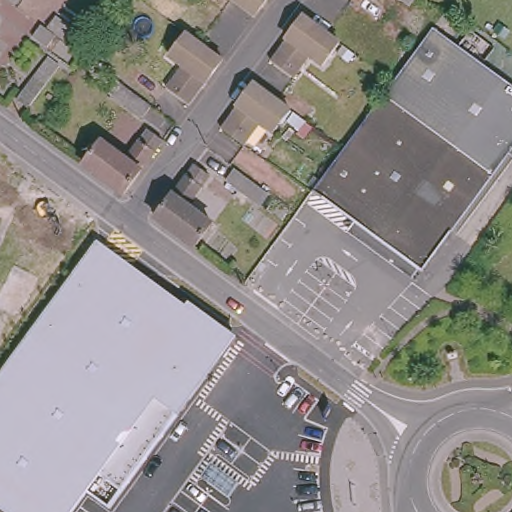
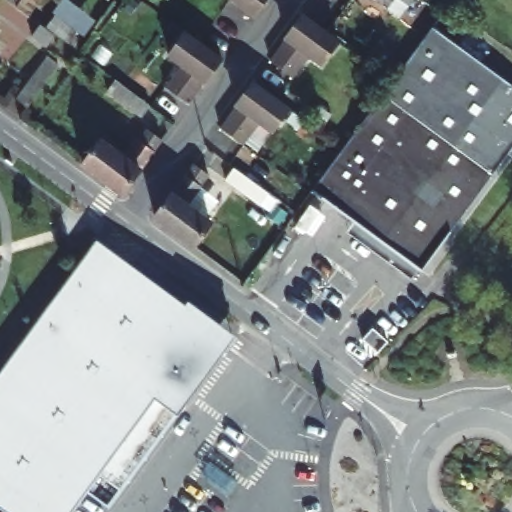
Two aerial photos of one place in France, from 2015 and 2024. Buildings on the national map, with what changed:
unchanged [(251,14),(232,0),(262,0),(251,14)]
unchanged [(404,5),(397,0),(408,0),(404,5)]
unchanged [(75,31),(66,42),(45,27),(53,16),(75,31)]
unchanged [(337,42),(321,65),(308,55),(292,78),(268,61),(285,38),(301,16),(337,42)]
unchanged [(228,44),(211,67),(195,89),(172,71),(188,49),(176,40),(193,18),(228,44)]
unchanged [(497,170),(388,89),(397,77),(436,23),(512,79),(512,150),(497,170)]
unchanged [(31,35),(39,25),(53,36),(45,46),(31,35)]
unchanged [(54,64),(67,73),(36,116),(23,106),(54,64)]
unchanged [(297,99),(281,122),(269,113),(252,135),(229,118),(245,96),(262,73),(297,99)]
unchanged [(102,89),(111,78),(145,103),(136,114),(102,89)]
unchanged [(348,144),(380,101),(388,89),(497,170),(420,271),(314,192),(348,145),(348,144)]
unchanged [(99,142),(124,161),(147,130),(160,139),(157,142),(136,170),(137,171),(121,193),(100,178),(81,165),(99,142)]
unchanged [(223,177),(231,167),(265,192),(258,202),(223,177)]
unchanged [(185,211),(210,229),(192,252),(152,223),(193,169),(208,180),(185,211)]
unchanged [(0,373),(96,240),(185,305),(188,301),(237,336),(180,416),(109,506),(88,493),(73,512),(5,512),(0,508),(0,373)]

